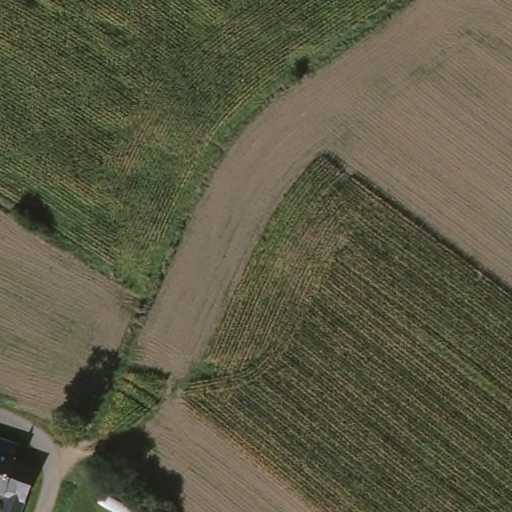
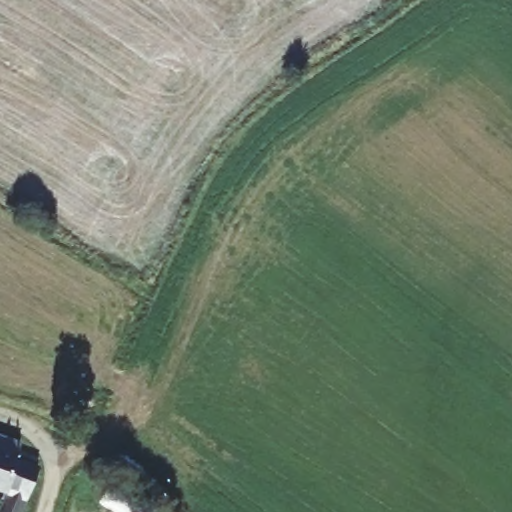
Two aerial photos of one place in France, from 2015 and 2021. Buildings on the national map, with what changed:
unchanged [(15,464),(34,473),(21,512),(0,512),(0,511),(1,507),(0,506),(0,498),(0,441),(20,448),(15,464)]

